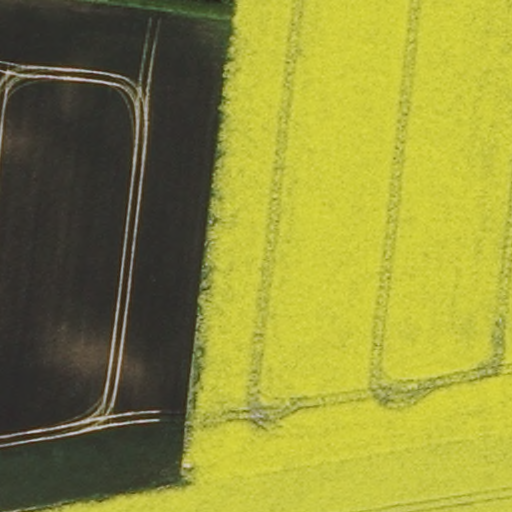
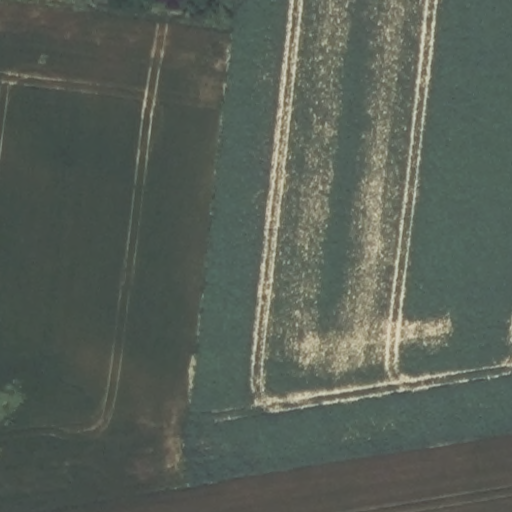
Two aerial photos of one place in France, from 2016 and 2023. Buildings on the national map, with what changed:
[]

